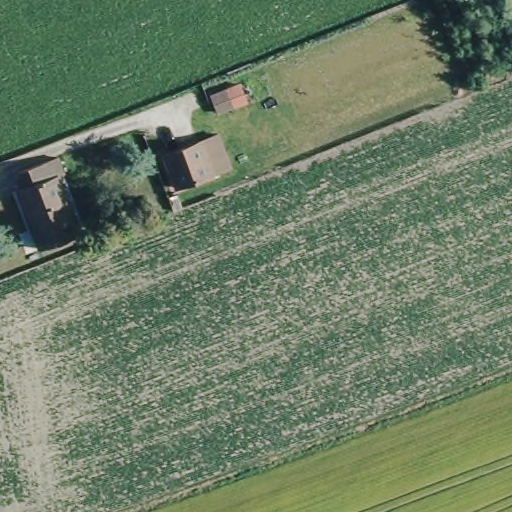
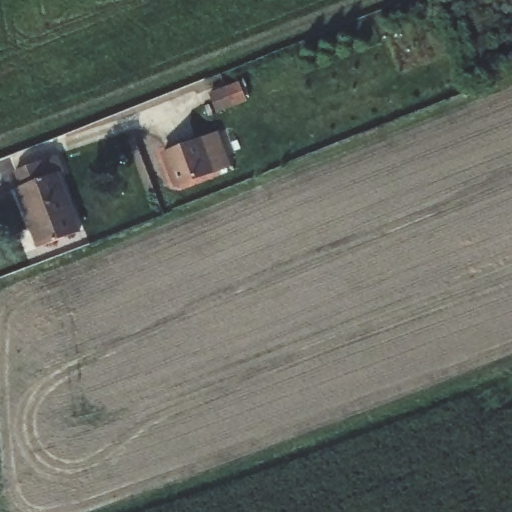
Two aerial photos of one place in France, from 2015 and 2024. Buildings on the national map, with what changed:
unchanged [(160,149),(172,145),(198,136),(211,170),(187,179),(175,183),(160,149)]
unchanged [(63,173),(55,176),(80,233),(42,248),(17,191),(24,188),(18,175),(58,159),(63,173)]

